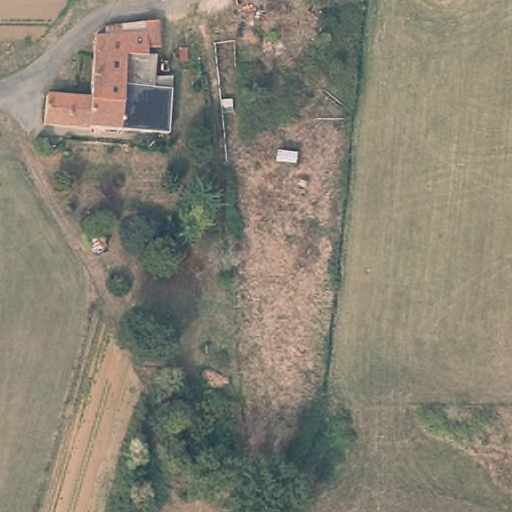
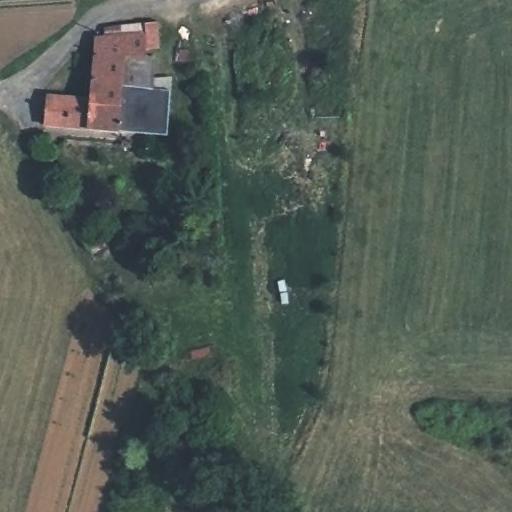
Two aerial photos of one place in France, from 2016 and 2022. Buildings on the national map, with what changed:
unchanged [(80,0),(93,0),(80,1),(80,0)]
unchanged [(156,119),(155,132),(90,127),(91,97),(92,87),(95,37),(95,36),(105,34),(104,27),(144,22),(157,20),(159,46),(147,48),(147,54),(155,55),(154,76),(171,78),(171,84),(170,107),(169,119),(156,119)]
unchanged [(45,122),(46,95),(91,97),(90,127),(45,122)]

